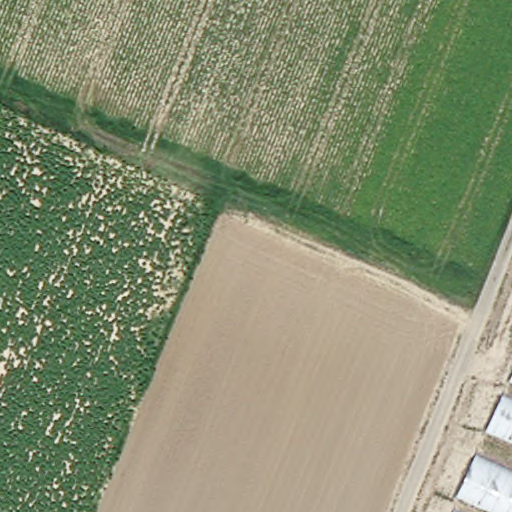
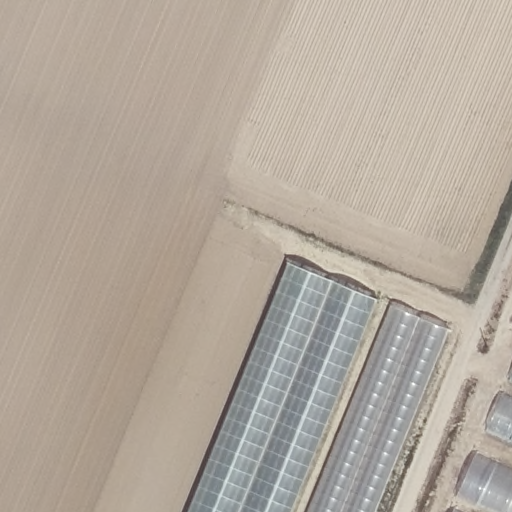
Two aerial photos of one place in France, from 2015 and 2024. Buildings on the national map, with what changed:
new [(187,512),(286,263),(376,299),(289,512),(187,512)]
new [(446,330),(371,512),(307,512),(390,304),(446,330)]
unchanged [(512,512),(456,512),(512,383),(512,512)]

